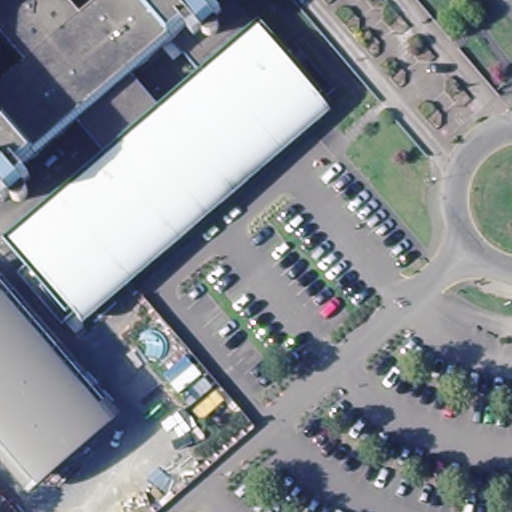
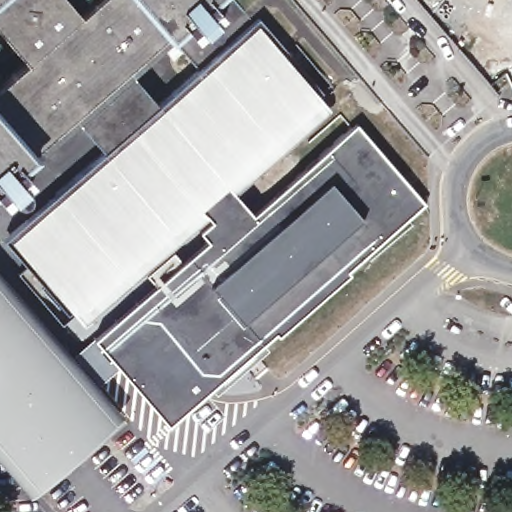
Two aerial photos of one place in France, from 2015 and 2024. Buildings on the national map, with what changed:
unchanged [(250,23),(254,19),(317,90),(312,94),(322,105),(228,189),(201,212),(76,319),(36,272),(31,276),(0,241),(100,153),(74,123),(16,173),(28,185),(20,191),(24,195),(23,200),(21,204),(16,206),(13,206),(6,201),(0,208),(0,0),(65,0),(79,16),(95,0),(229,0),(250,23)]
new [(147,279),(174,255),(185,268),(209,246),(201,236),(213,226),(201,212),(228,189),(254,219),(357,129),(426,207),(350,275),(352,277),(281,340),(278,337),(172,430),(96,344),(158,291),(147,279)]
unchanged [(0,273),(121,414),(28,495),(0,463),(0,273)]

